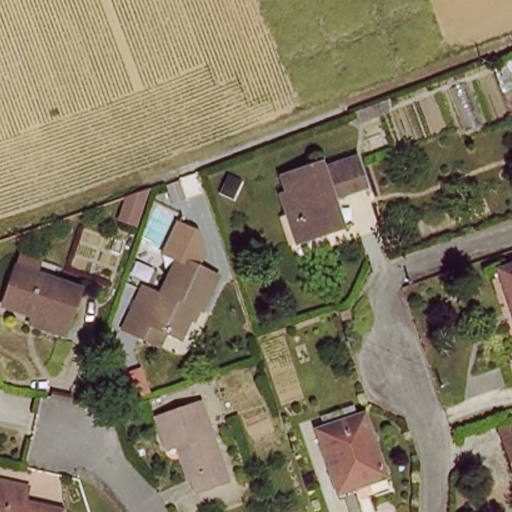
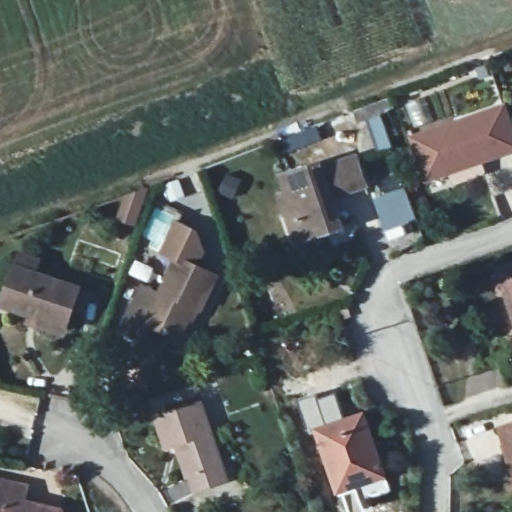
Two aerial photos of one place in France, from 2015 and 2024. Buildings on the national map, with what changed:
new [(496,116),(510,154),(420,187),(405,145),(496,116)]
unchanged [(321,173),(358,159),(368,187),(332,201),(343,230),(303,246),(292,217),(281,221),(274,200),(285,196),(279,179),(317,165),(321,173)]
unchanged [(143,338),(125,330),(144,288),(162,295),(178,259),(218,276),(202,310),(196,307),(183,338),(166,331),(160,345),(143,338)]
unchanged [(6,308),(20,270),(83,292),(70,330),(6,308)]
unchanged [(180,450),(172,452),(162,420),(207,406),(233,485),(201,496),(196,483),(191,485),(180,450)]
unchanged [(336,495),(315,436),(362,420),(383,479),(336,495)]
unchanged [(512,434),(512,470),(500,439),(512,434)]
unchanged [(22,486),(19,501),(45,512),(0,512),(0,480),(22,486)]

